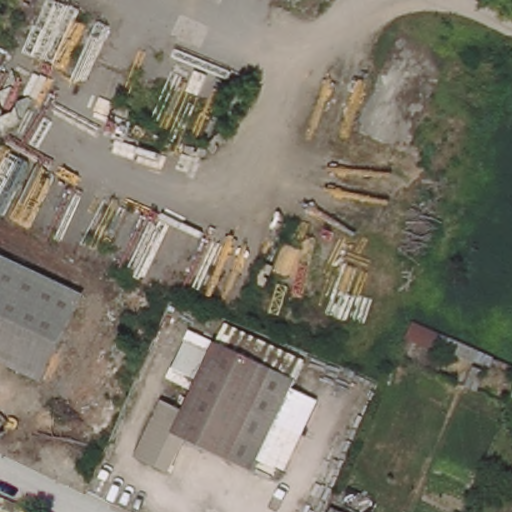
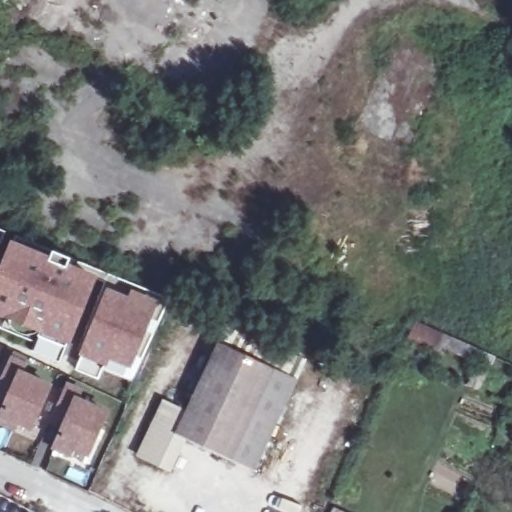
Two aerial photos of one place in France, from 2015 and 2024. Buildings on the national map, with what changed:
new [(0,237),(0,227),(3,229),(0,237)]
new [(105,288),(105,282),(97,277),(69,343),(60,362),(32,352),(35,343),(0,328),(0,270),(12,241),(15,237),(53,252),(70,259),(170,300),(132,381),(100,369),(97,379),(76,371),(80,356),(105,288)]
demolished [(38,383),(0,365),(0,260),(80,299),(38,383)]
unchanged [(480,362),(450,349),(415,334),(420,322),(456,337),(485,350),(480,362)]
unchanged [(230,334),(308,369),(300,388),(220,353),(230,334)]
unchanged [(300,388),(257,480),(187,449),(171,480),(142,467),(168,415),(187,424),(220,353),(300,388)]
new [(0,401),(0,377),(9,356),(27,363),(25,372),(52,384),(32,431),(17,425),(15,432),(0,426),(0,410),(3,403),(0,401)]
new [(80,398),(110,411),(90,458),(73,451),(71,459),(52,450),(55,442),(58,431),(48,424),(67,383),(83,389),(80,398)]

